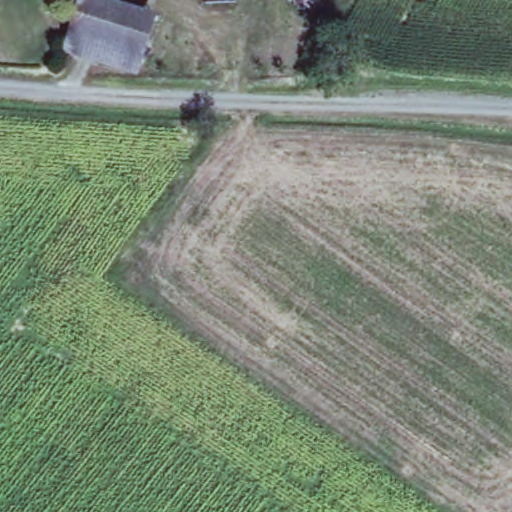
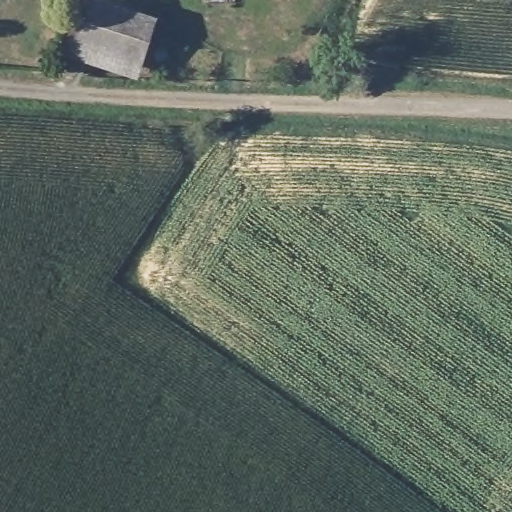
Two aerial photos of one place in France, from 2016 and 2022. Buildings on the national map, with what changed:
unchanged [(144,79),(65,52),(82,0),(107,0),(163,17),(144,79)]

